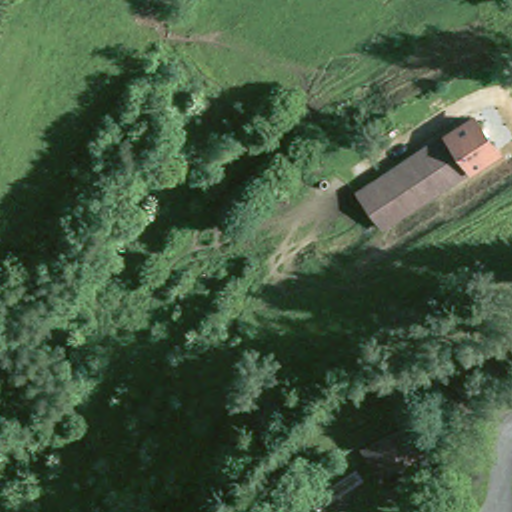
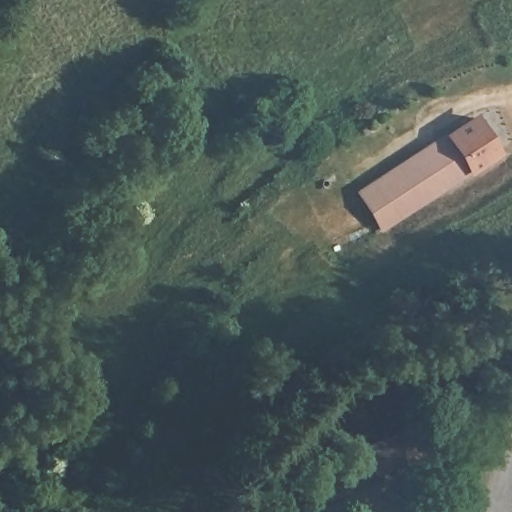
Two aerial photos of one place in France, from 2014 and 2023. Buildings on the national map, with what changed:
unchanged [(395,197),(457,155),(445,137),(470,120),(496,156),(378,230),(355,195),(380,179),(395,197)]
unchanged [(445,137),(457,155),(395,197),(380,179),(445,137)]
unchanged [(430,453),(390,470),(377,443),(414,423),(430,453)]
unchanged [(248,512),(219,512),(240,491),(255,506),(248,512)]
unchanged [(405,512),(457,509),(457,512),(405,512)]

